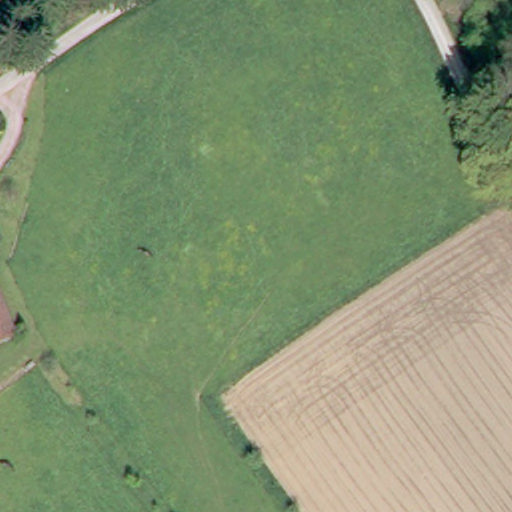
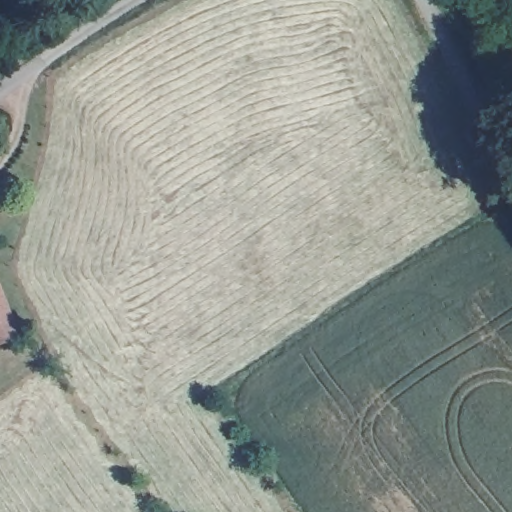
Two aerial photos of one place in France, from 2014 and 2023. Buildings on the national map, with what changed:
unchanged [(0,329),(0,293),(10,325),(0,329)]

